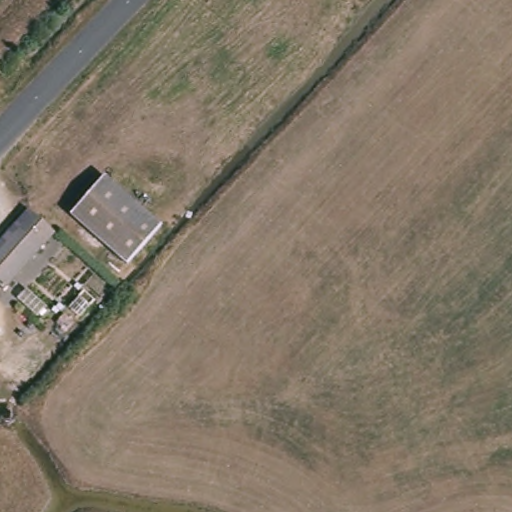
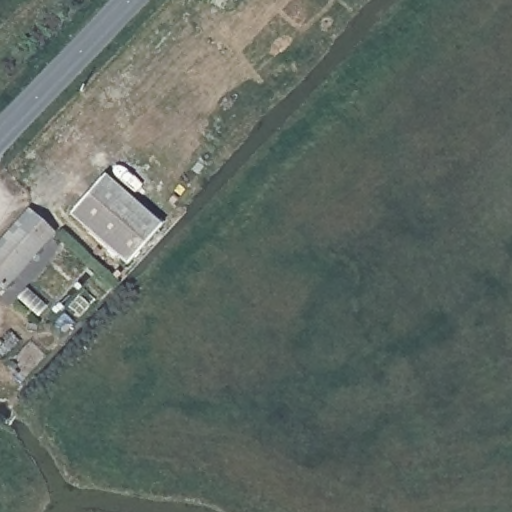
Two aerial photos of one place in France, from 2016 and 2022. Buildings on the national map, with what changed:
unchanged [(165,228),(129,268),(79,223),(70,215),(104,175),(111,181),(165,228)]
unchanged [(8,287),(0,281),(0,247),(31,210),(56,231),(8,287)]

